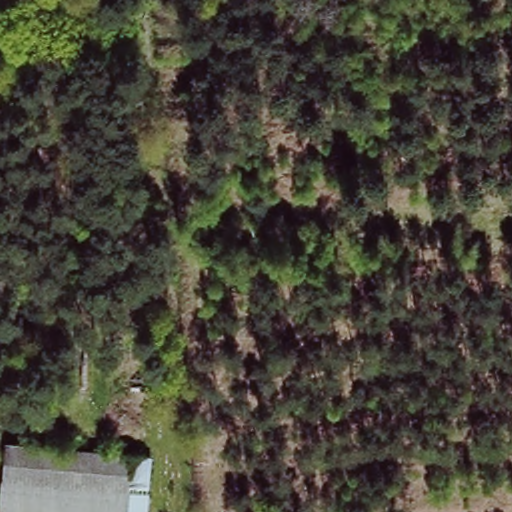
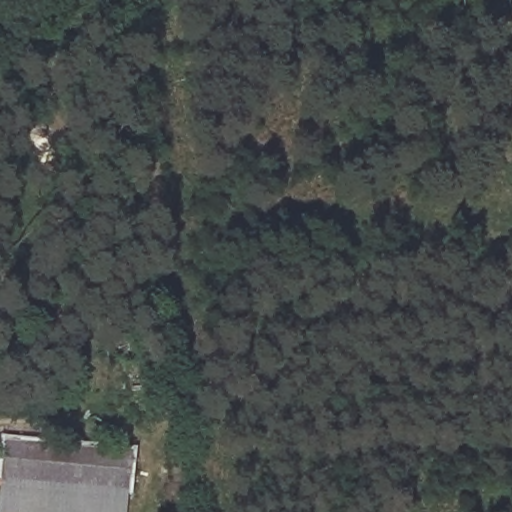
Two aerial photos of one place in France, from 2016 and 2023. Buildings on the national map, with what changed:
unchanged [(2,451),(111,458),(122,459),(119,512),(0,512),(0,497),(1,473),(2,451)]
unchanged [(149,512),(119,512),(122,459),(152,461),(149,512)]

